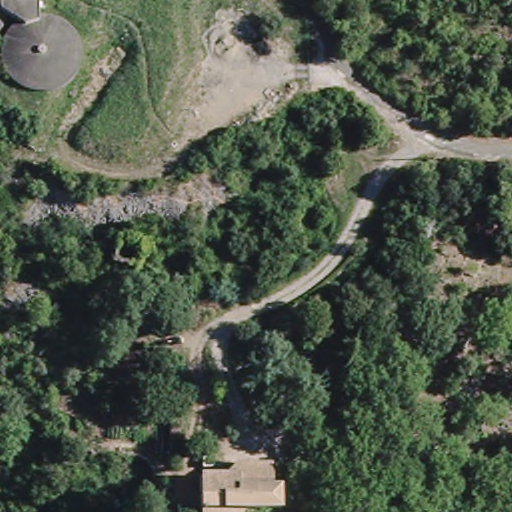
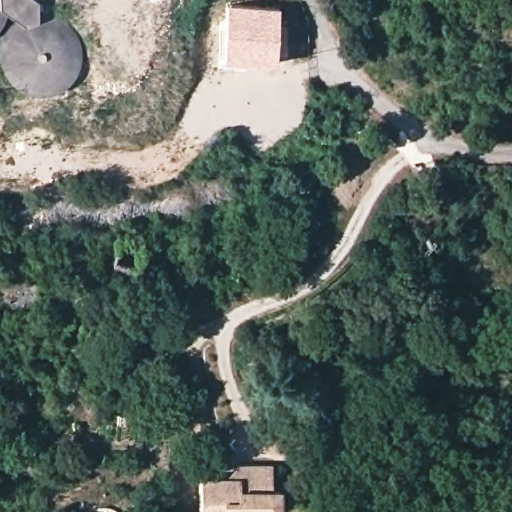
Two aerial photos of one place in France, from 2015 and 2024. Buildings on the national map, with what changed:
unchanged [(5,18),(6,14),(6,8),(5,1),(5,0),(33,0),(37,3),(37,15),(21,16),(12,22),(5,18)]
new [(225,3),(280,6),(275,65),(221,62),(225,3)]
unchanged [(207,475),(237,476),(237,461),(275,463),(273,490),(281,490),(281,512),(265,512),(252,500),(243,510),(241,512),(204,512),(204,508),(207,475)]

